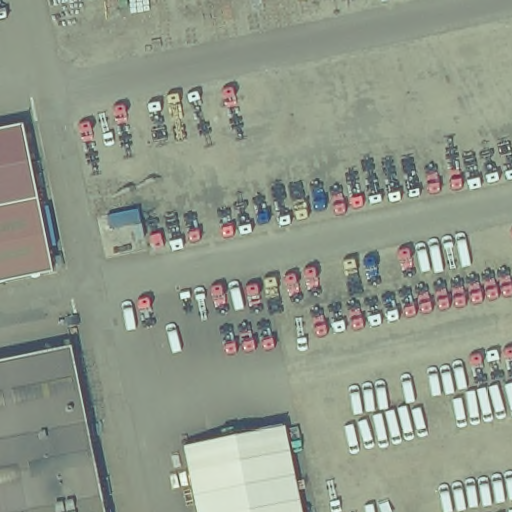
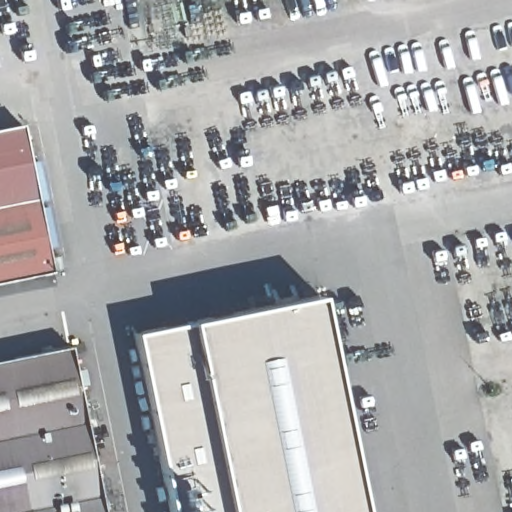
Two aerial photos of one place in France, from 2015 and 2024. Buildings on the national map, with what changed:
unchanged [(59,270),(0,283),(0,130),(27,124),(59,270)]
unchanged [(67,254),(69,267),(62,268),(59,256),(67,254)]
new [(187,321),(320,295),(363,512),(170,512),(134,333),(187,321)]
unchanged [(109,512),(0,512),(0,360),(74,345),(109,512)]
demolished [(205,512),(192,445),(292,426),(308,512),(205,512)]

